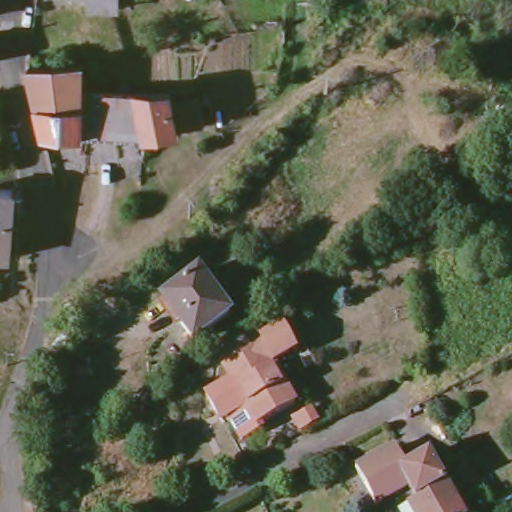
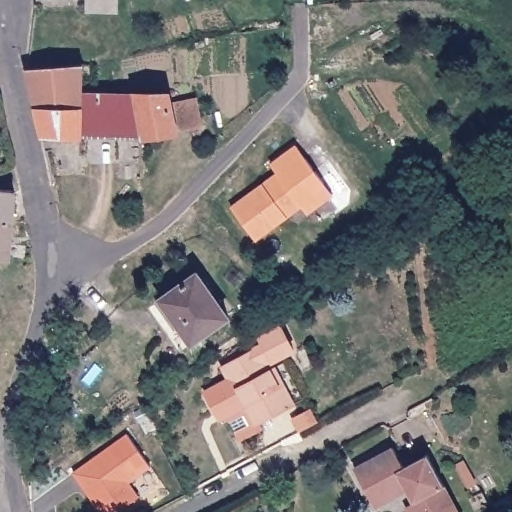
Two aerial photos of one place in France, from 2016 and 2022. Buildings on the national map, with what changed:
unchanged [(86,0),(117,0),(117,6),(86,7),(86,0)]
unchanged [(80,131),(41,130),(25,65),(54,62),(82,60),(84,60),(91,59),(90,72),(82,72),(82,89),(80,131)]
unchanged [(195,98),(209,96),(210,110),(200,112),(202,122),(194,124),(174,129),(140,132),(116,132),(80,131),(82,89),(117,89),(134,89),(167,88),(168,99),(193,96),(195,98)]
new [(307,214),(300,205),(255,240),(230,206),(276,172),(270,165),(295,145),(335,195),(307,214)]
unchanged [(12,212),(0,212),(0,182),(14,184),(12,212)]
unchanged [(12,212),(8,253),(0,253),(0,212),(12,212)]
unchanged [(190,337),(160,292),(197,266),(228,311),(190,337)]
unchanged [(262,345),(259,340),(280,328),(287,340),(285,350),(288,355),(267,366),(290,411),(252,429),(240,405),(245,403),(238,388),(234,391),(221,367),(262,345)]
new [(147,463),(125,478),(135,493),(110,512),(107,512),(97,510),(87,495),(92,491),(84,480),(79,483),(70,470),(124,431),(147,463)]
unchanged [(405,503),(412,500),(405,488),(371,505),(350,467),(389,446),(400,466),(425,454),(450,500),(457,512),(410,512),(405,503)]

